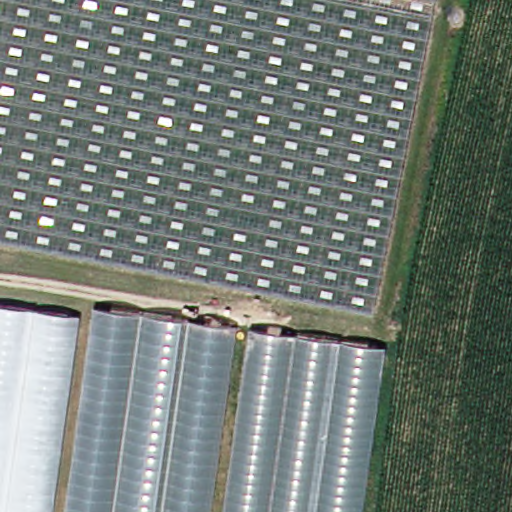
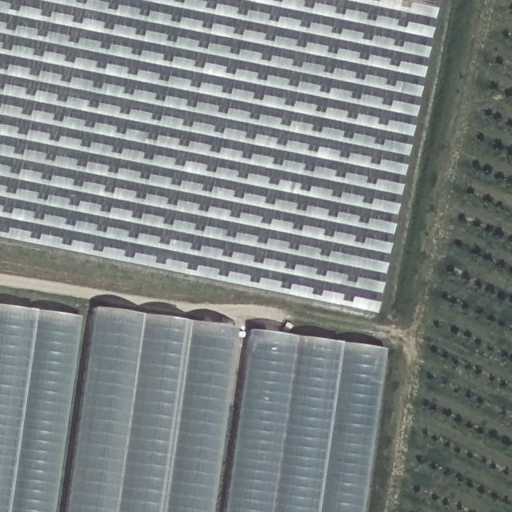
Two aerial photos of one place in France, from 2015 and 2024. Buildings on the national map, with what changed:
unchanged [(422,13),(403,120),(380,247),(368,313),(0,242),(0,0),(425,0),(422,13)]
unchanged [(0,512),(0,306),(69,315),(43,512),(0,512)]
unchanged [(204,512),(57,512),(85,308),(230,328),(204,512)]
unchanged [(353,512),(215,512),(240,330),(375,350),(353,512)]

